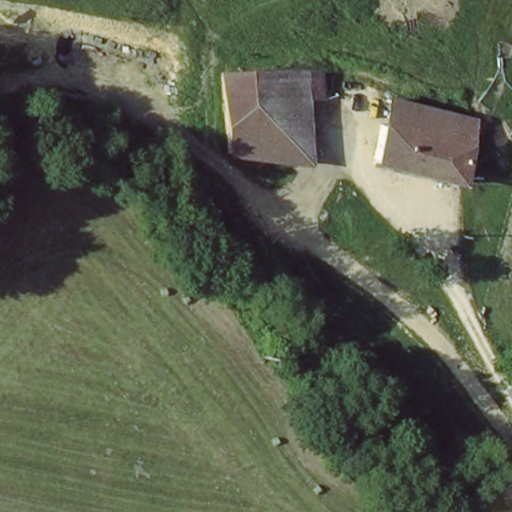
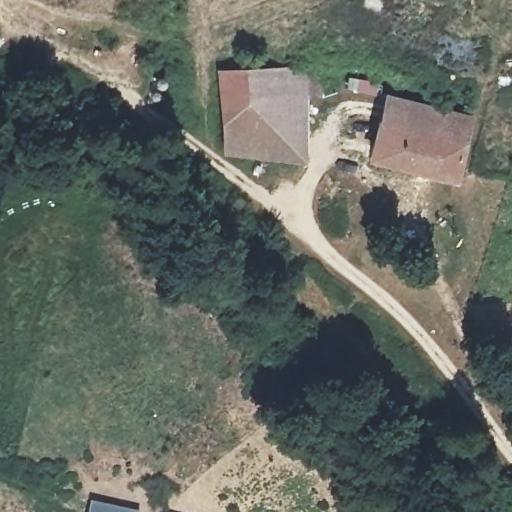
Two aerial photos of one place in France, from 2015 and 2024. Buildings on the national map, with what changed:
unchanged [(224,160),(223,79),(298,75),(340,72),(339,94),(299,95),(301,165),(224,160)]
unchanged [(371,162),(388,101),(473,123),(458,188),(371,162)]
new [(139,510),(139,512),(88,512),(90,499),(139,510)]

